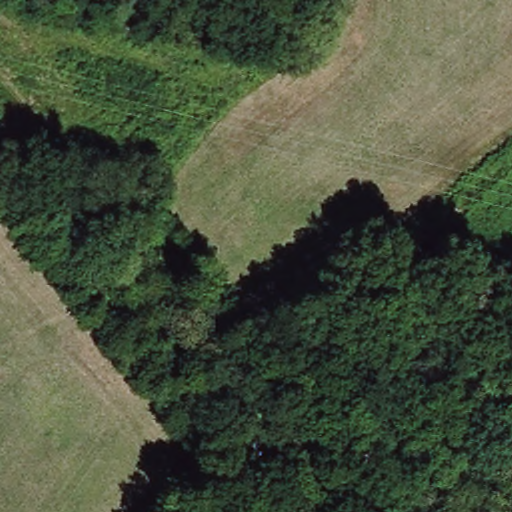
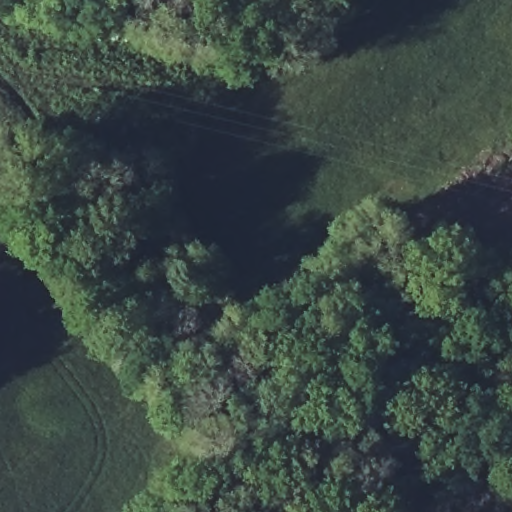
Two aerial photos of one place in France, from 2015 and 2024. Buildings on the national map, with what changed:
[]

